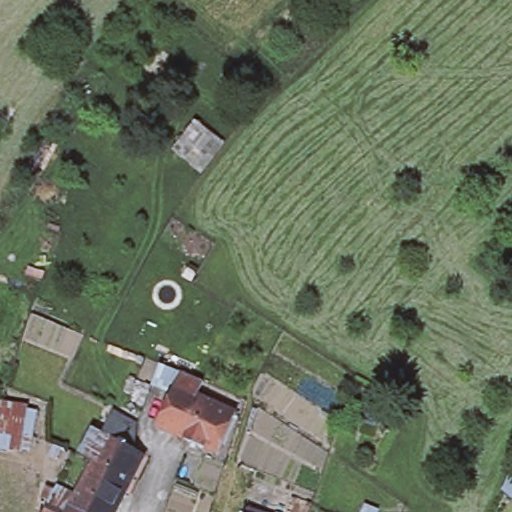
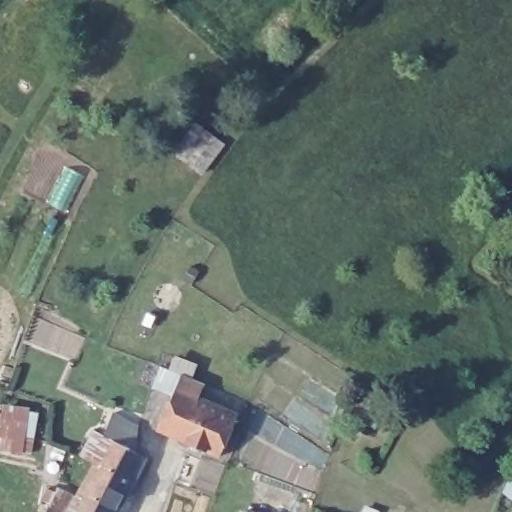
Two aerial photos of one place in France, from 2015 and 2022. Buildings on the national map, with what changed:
unchanged [(216,139),(195,167),(175,152),(196,124),(216,139)]
unchanged [(219,457),(157,428),(170,397),(157,391),(151,388),(160,366),(166,368),(204,383),(197,397),(237,415),(219,457)]
unchanged [(39,410),(31,457),(0,452),(0,428),(5,402),(39,410)]
unchanged [(75,498),(94,462),(80,455),(92,430),(107,437),(112,413),(137,426),(134,452),(145,457),(118,512),(45,512),(56,488),(75,498)]
unchanged [(506,491),(512,476),(512,496),(506,491)]

